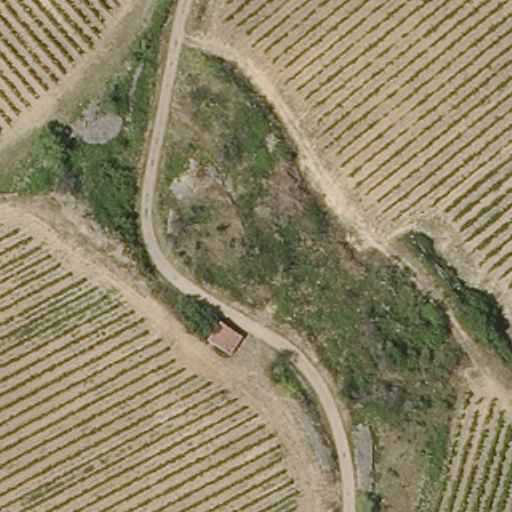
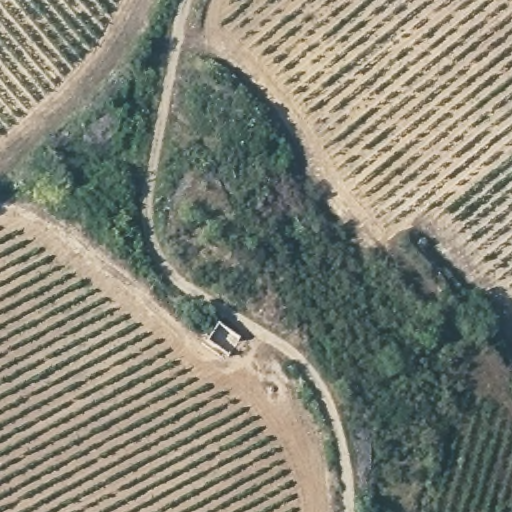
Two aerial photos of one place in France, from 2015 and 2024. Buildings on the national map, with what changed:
unchanged [(225,358),(203,338),(218,325),(238,345),(225,358)]

